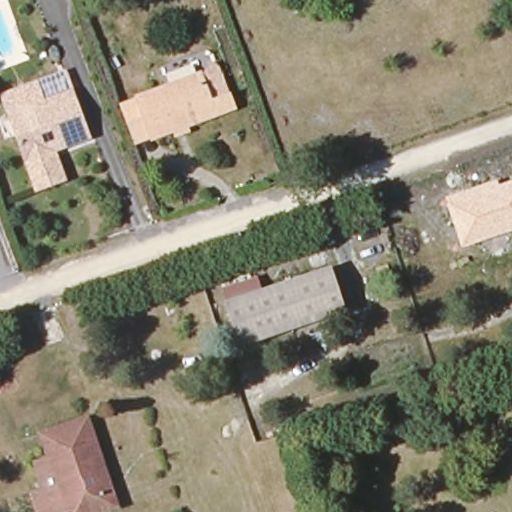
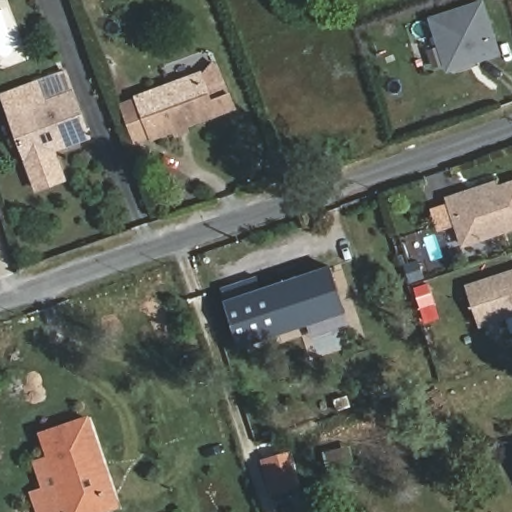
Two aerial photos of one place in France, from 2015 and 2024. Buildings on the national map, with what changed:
new [(446,72),(427,16),(479,0),(484,0),(500,54),(446,72)]
unchanged [(136,146),(120,105),(200,71),(217,63),(228,94),(235,110),(136,146)]
unchanged [(72,90),(90,139),(56,150),(22,161),(0,97),(0,95),(37,82),(45,101),(72,90)]
unchanged [(65,181),(32,191),(22,161),(56,150),(65,181)]
unchanged [(463,247),(446,197),(497,178),(499,184),(512,180),(512,231),(463,247)]
unchanged [(329,263),(346,312),(237,346),(221,299),(329,263)]
new [(480,329),(464,284),(512,269),(512,319),(480,329)]
unchanged [(36,512),(31,496),(42,491),(33,467),(50,461),(40,435),(87,423),(102,469),(114,508),(105,512),(36,512)]
demolished [(474,509),(461,512),(444,512),(440,487),(469,480),(474,509)]

